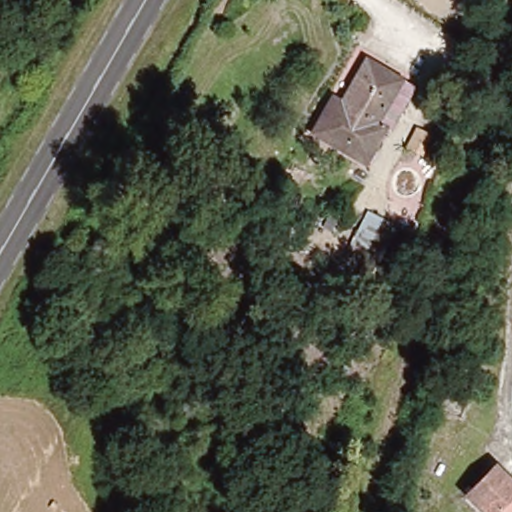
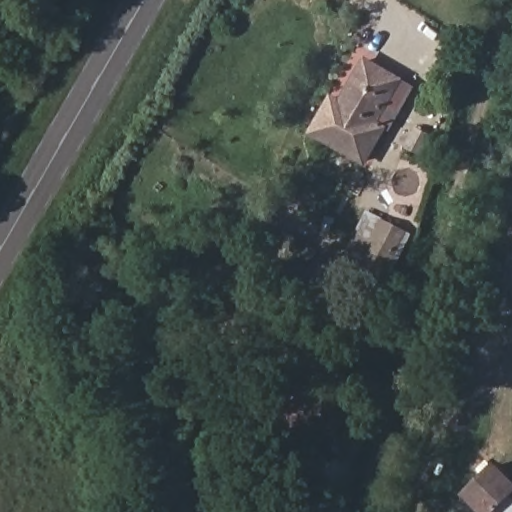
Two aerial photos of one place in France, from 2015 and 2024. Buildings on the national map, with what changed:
unchanged [(386,115),(396,119),(377,159),(320,134),(335,101),(347,107),(367,63),(402,79),(386,115)]
unchanged [(366,212),(412,234),(384,299),(354,286),(365,258),(348,250),(366,212)]
unchanged [(512,498),(512,512),(481,512),(459,491),(487,462),(510,485),(504,490),(512,498)]

